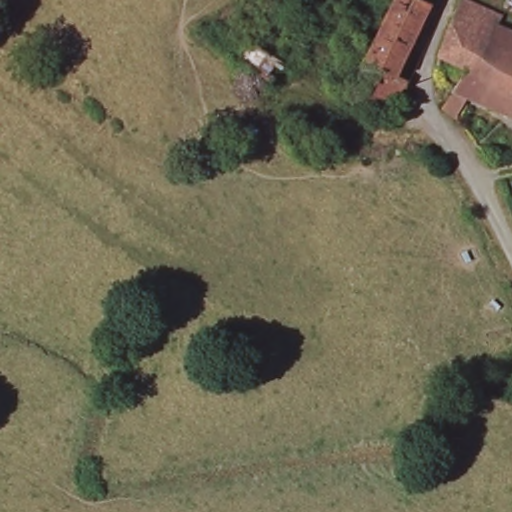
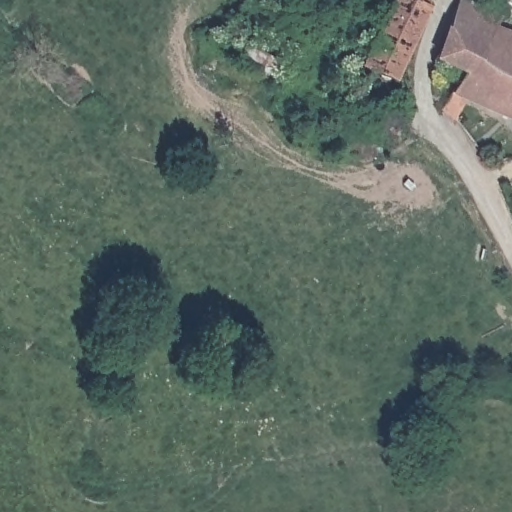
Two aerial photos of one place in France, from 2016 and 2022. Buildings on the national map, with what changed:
unchanged [(371,60),(361,54),(394,0),(437,0),(437,1),(408,47),(397,65),(395,67),(402,74),(390,92),(378,111),(351,92),(371,60)]
unchanged [(466,95),(454,122),(445,114),(443,112),(449,102),(457,87),(453,85),(445,80),(435,74),(436,69),(437,66),(438,63),(440,59),(447,37),(450,31),(455,16),(457,12),(458,7),(461,2),(461,0),(469,0),(496,14),(492,25),(499,29),(512,36),(512,116),(466,95)]
unchanged [(505,2),(506,0),(512,0),(512,7),(505,2)]
unchanged [(265,7),(278,16),(271,27),(302,46),(263,96),(235,75),(246,57),(222,42),(245,9),(258,17),(265,7)]

